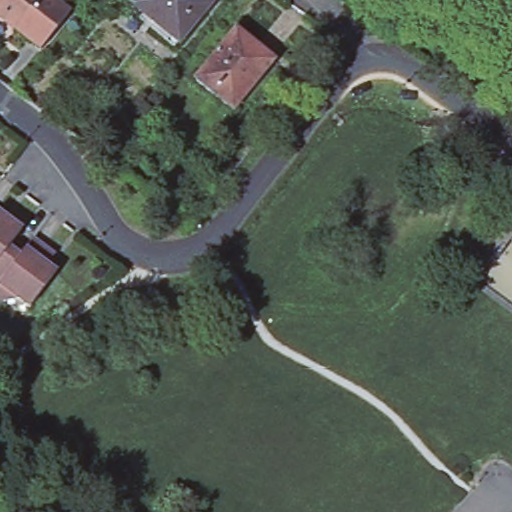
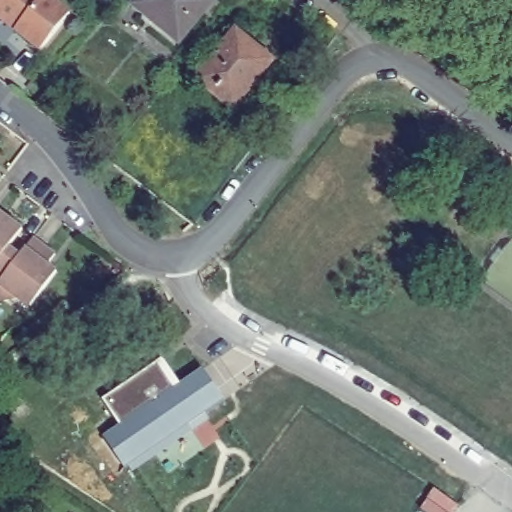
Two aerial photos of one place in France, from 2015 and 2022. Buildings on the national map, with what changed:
unchanged [(16,31),(20,27),(11,19),(8,23),(0,16),(0,0),(53,0),(71,15),(40,51),(16,31)]
unchanged [(180,41),(135,6),(140,0),(212,0),(180,41)]
unchanged [(233,111),(196,81),(234,32),(271,62),(233,111)]
unchanged [(0,206),(26,226),(13,243),(25,252),(0,286),(0,206)]
unchanged [(9,296),(0,290),(0,286),(25,252),(38,235),(59,251),(53,259),(61,266),(55,274),(34,302),(26,295),(9,296)]
new [(105,436),(123,423),(109,403),(161,368),(178,391),(198,377),(220,409),(128,469),(105,436)]

